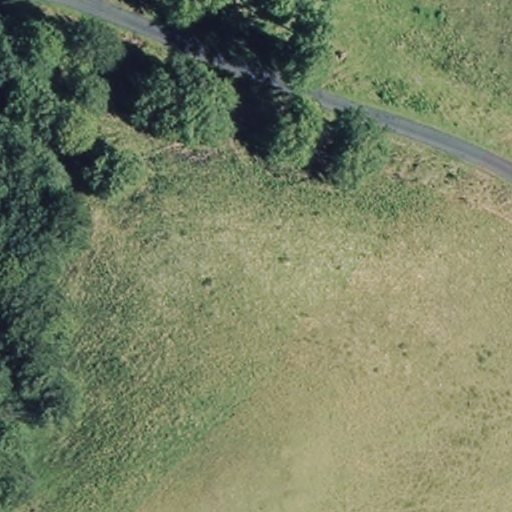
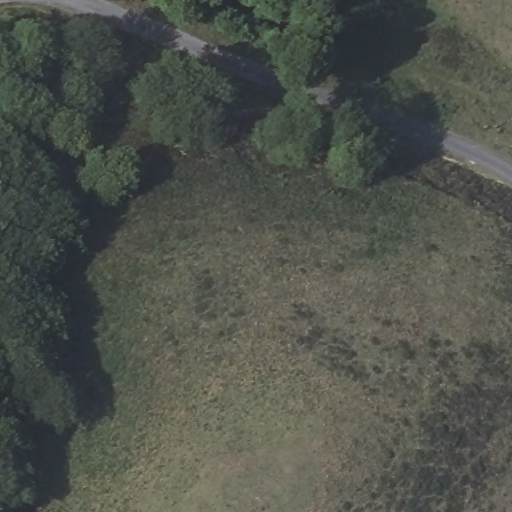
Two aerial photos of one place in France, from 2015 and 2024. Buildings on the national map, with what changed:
[]

